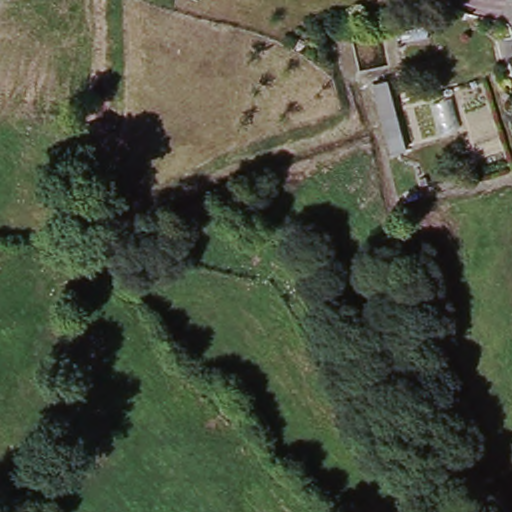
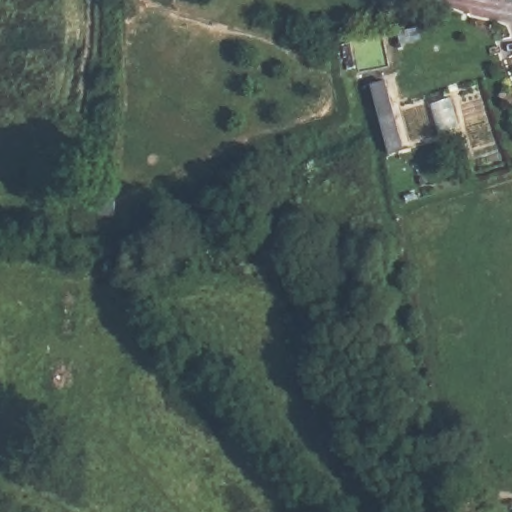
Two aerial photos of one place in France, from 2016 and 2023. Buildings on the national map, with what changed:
unchanged [(404,144),(392,147),(379,104),(372,81),(385,76),(395,99),(404,144)]

